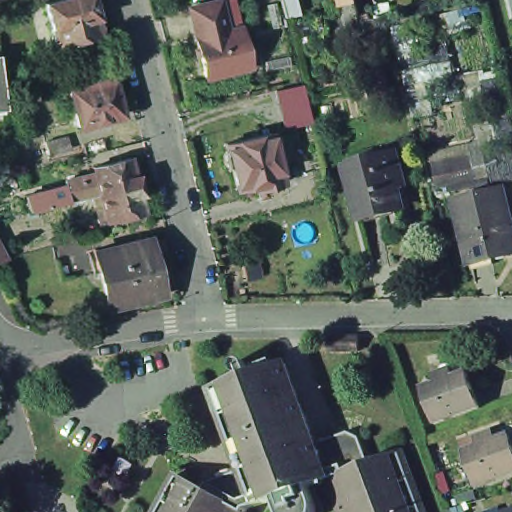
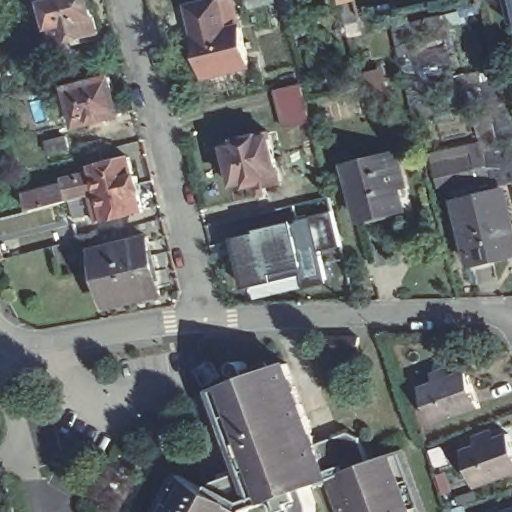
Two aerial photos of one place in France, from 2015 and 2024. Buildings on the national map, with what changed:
unchanged [(75,46),(78,56),(64,60),(60,45),(48,2),(59,0),(95,0),(103,33),(87,37),(88,44),(75,46)]
unchanged [(249,65),(203,76),(194,38),(195,37),(188,7),(217,0),(225,30),(240,27),(249,65)]
unchanged [(350,2),(358,35),(348,37),(345,39),(342,31),(337,14),(336,8),(338,6),(337,0),(350,0),(350,2)]
unchanged [(115,77),(121,100),(122,100),(126,115),(109,120),(110,125),(97,127),(97,123),(82,126),(72,89),(115,77)]
unchanged [(1,107),(0,102),(0,83),(2,95),(2,107),(1,107)]
unchanged [(282,122),(279,106),(275,90),(302,84),(305,100),(309,115),(282,122)]
unchanged [(482,137),(476,120),(507,112),(512,130),(512,211),(502,184),(498,179),(437,191),(427,150),(482,137)]
unchanged [(260,190),(258,186),(242,190),(236,170),(234,170),(230,167),(227,156),(230,152),(232,151),(230,145),(274,134),(285,180),(286,184),(260,190)]
unchanged [(65,136),(68,148),(43,155),(39,144),(65,136)]
unchanged [(74,197),(73,196),(35,205),(34,206),(30,191),(32,190),(70,180),(68,176),(98,168),(97,162),(133,153),(138,171),(142,173),(143,180),(145,186),(143,190),(147,206),(110,215),(102,216),(96,191),(74,197)]
unchanged [(363,227),(351,176),(395,166),(404,164),(412,193),(402,195),(407,217),(363,227)]
unchanged [(502,184),(512,211),(512,259),(473,272),(453,200),(502,184)]
new [(265,234),(265,230),(335,211),(343,246),(324,251),(331,283),(309,287),(305,275),(253,287),(242,239),(265,234)]
unchanged [(0,262),(0,242),(10,260),(0,262)]
unchanged [(162,301),(162,300),(157,301),(113,311),(114,313),(112,313),(98,256),(100,255),(100,256),(149,244),(148,243),(150,242),(158,274),(164,295),(165,301),(162,301)]
unchanged [(361,337),(361,351),(333,352),(332,337),(361,337)]
unchanged [(312,441),(344,430),(357,435),(366,460),(397,447),(421,512),(337,512),(325,478),(306,485),(313,505),(313,510),(313,512),(278,512),(272,498),(245,510),(243,512),(155,512),(176,472),(206,489),(212,480),(218,477),(218,478),(232,474),(232,472),(239,470),(210,388),(282,360),(312,441)]
unchanged [(437,385),(433,377),(447,372),(450,380),(468,375),(482,412),(437,428),(423,390),(437,385)]
unchanged [(478,445),(475,435),(489,431),(492,440),(510,433),(512,439),(512,474),(477,486),(465,450),(478,445)]

